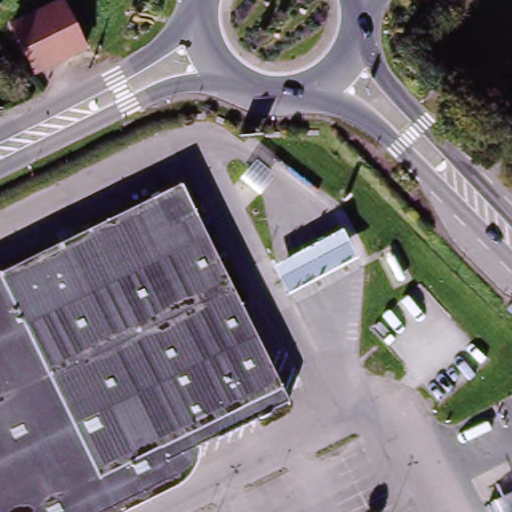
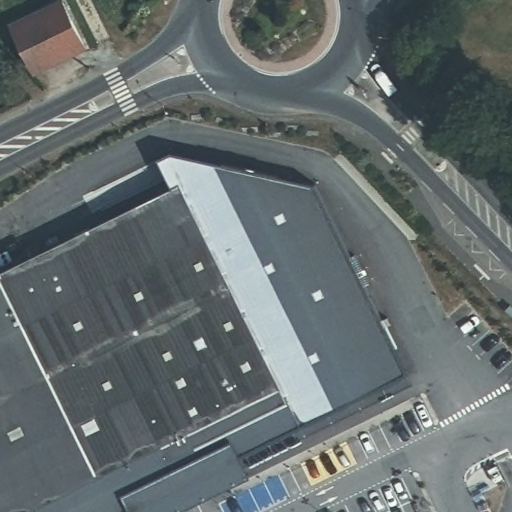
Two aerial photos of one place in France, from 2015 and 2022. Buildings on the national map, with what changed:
unchanged [(8,24),(53,0),(66,0),(90,48),(33,72),(8,24)]
new [(158,158),(171,151),(316,183),(415,384),(247,467),(251,476),(177,512),(131,512),(129,507),(185,479),(197,465),(202,449),(291,403),(181,183),(172,188),(158,158)]
unchanged [(0,273),(181,183),(291,403),(202,449),(197,465),(185,479),(118,512),(0,512),(0,273)]

